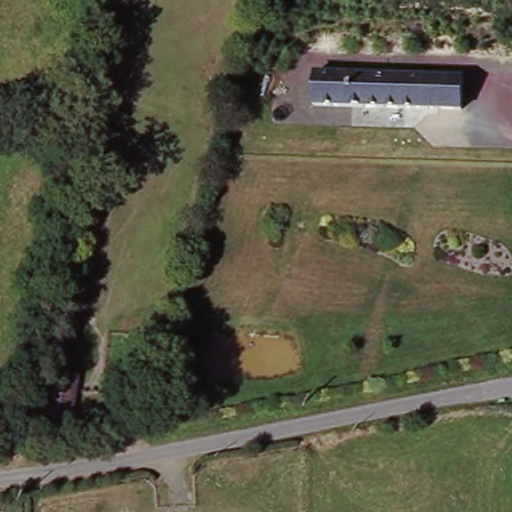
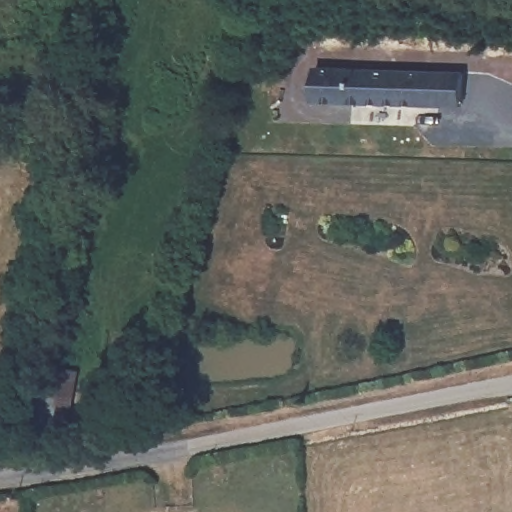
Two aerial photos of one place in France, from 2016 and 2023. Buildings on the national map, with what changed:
unchanged [(312,69),(459,74),(461,107),(312,103),(312,69)]
unchanged [(70,374),(58,435),(40,432),(51,371),(70,374)]

